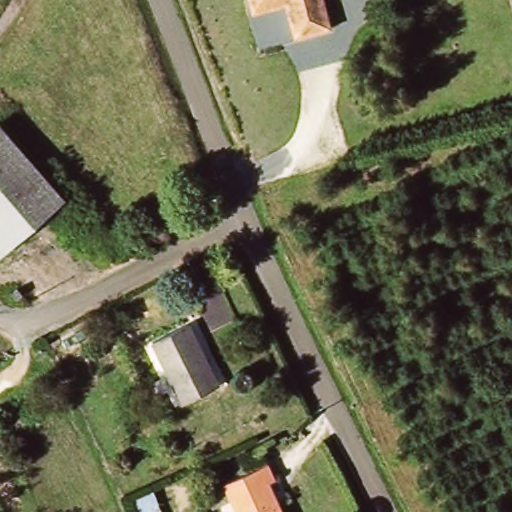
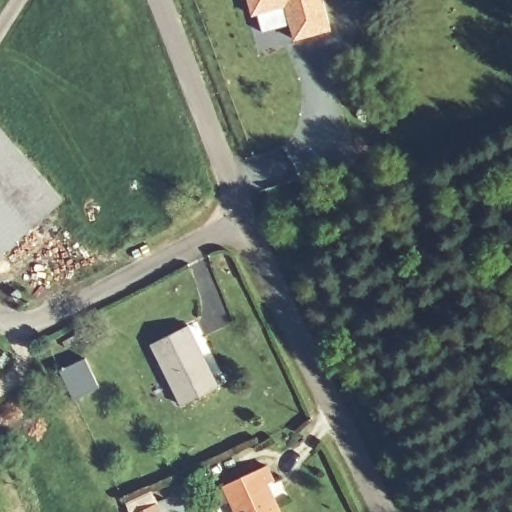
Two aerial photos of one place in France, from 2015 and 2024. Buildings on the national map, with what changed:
unchanged [(298,35),(287,2),(254,14),(249,0),(326,0),(334,22),(298,35)]
unchanged [(0,257),(0,128),(64,196),(0,257)]
unchanged [(192,330),(219,387),(182,404),(155,347),(192,330)]
new [(90,355),(103,384),(73,396),(59,367),(90,355)]
unchanged [(267,483),(280,512),(236,512),(223,484),(265,465),(273,480),(267,483)]
unchanged [(135,512),(129,497),(154,487),(162,512),(135,512)]

